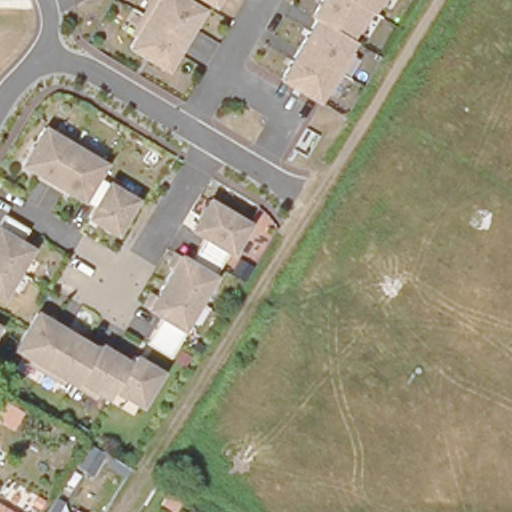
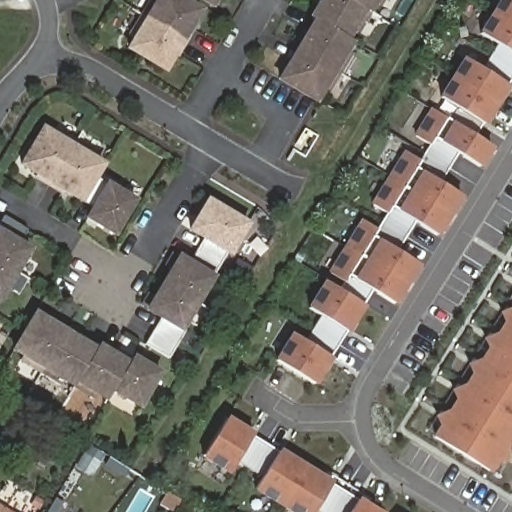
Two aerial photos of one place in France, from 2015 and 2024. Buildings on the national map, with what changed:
unchanged [(128,49),(157,0),(191,0),(206,9),(167,72),(128,49)]
unchanged [(200,0),(218,0),(213,9),(200,0)]
new [(495,147),(482,169),(461,156),(443,184),(463,196),(438,237),(417,224),(401,251),(422,265),(397,306),(376,292),(317,386),(276,360),(293,332),(308,341),(323,316),(307,307),(325,280),(340,290),(345,283),(328,273),(362,219),(377,228),(386,214),(371,204),(405,150),(420,160),(429,145),(415,136),(432,109),(448,120),(457,106),(438,95),(463,56),(484,69),(498,44),(478,31),(498,0),(512,0),(512,85),(479,138),(495,147)]
unchanged [(368,12),(353,37),(358,41),(317,103),(278,80),(312,20),(307,19),(317,0),(381,0),(372,15),(368,12)]
unchanged [(104,160),(94,177),(132,197),(111,235),(81,219),(87,206),(16,165),(41,124),(104,160)]
unchanged [(247,222),(182,328),(187,330),(168,357),(145,343),(159,319),(143,310),(177,253),(191,261),(204,240),(185,230),(204,195),(247,222)]
unchanged [(31,245),(0,299),(0,227),(31,245)]
unchanged [(97,346),(100,341),(129,358),(132,354),(161,368),(139,405),(112,390),(106,400),(75,381),(72,385),(10,349),(35,308),(97,346)]
new [(432,436),(512,309),(512,441),(492,473),(432,436)]
unchanged [(18,415),(8,431),(0,426),(0,404),(18,415)]
new [(315,510),(314,512),(290,512),(254,490),(261,477),(237,462),(229,475),(202,458),(228,415),(384,512),(319,512),(315,510)]
unchanged [(2,512),(0,512),(0,511),(2,512)]

